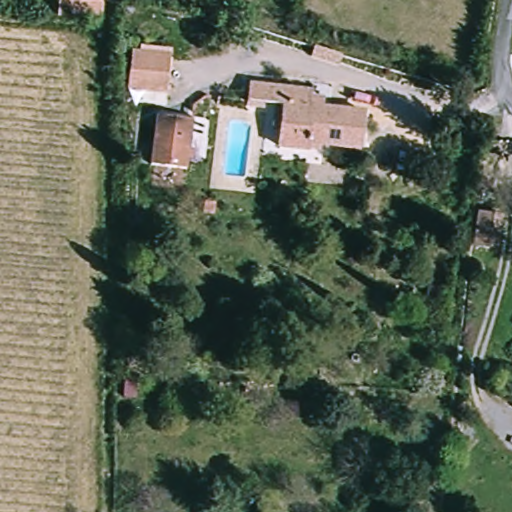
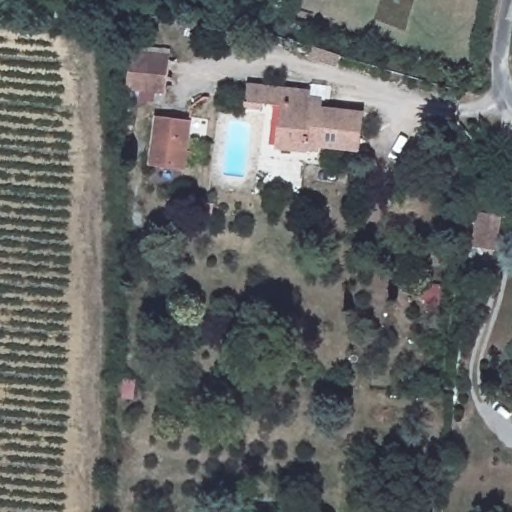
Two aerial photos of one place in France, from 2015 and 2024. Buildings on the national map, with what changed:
unchanged [(58,11),(58,0),(96,0),(95,13),(58,11)]
unchanged [(166,95),(127,90),(131,50),(170,54),(166,95)]
unchanged [(285,105),(246,100),(248,84),(316,92),(314,102),(324,104),(323,111),(363,116),(358,152),(306,145),(305,153),(280,149),(285,105)]
unchanged [(193,121),(186,170),(148,165),(155,116),(193,121)]
unchanged [(501,216),(496,252),(469,248),(473,213),(501,216)]

